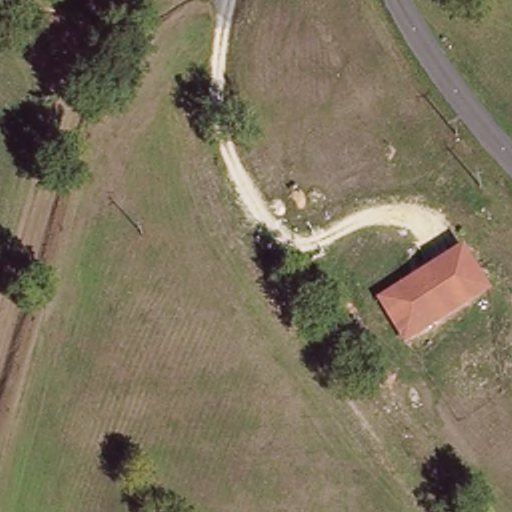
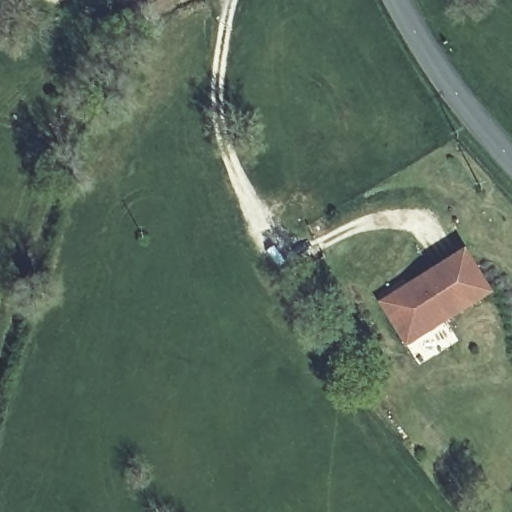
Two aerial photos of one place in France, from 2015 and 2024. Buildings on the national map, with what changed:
unchanged [(496,293),(408,348),(380,302),(468,247),(496,293)]

